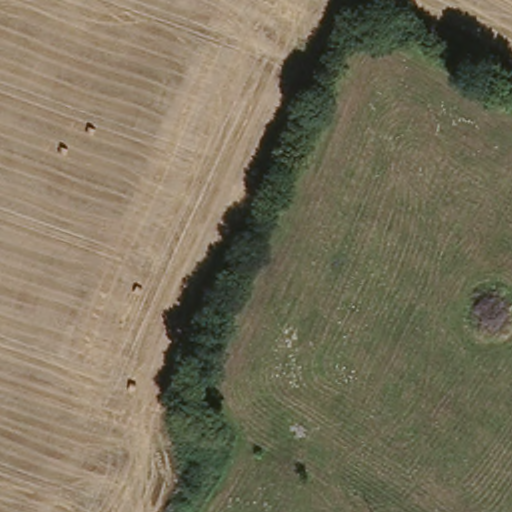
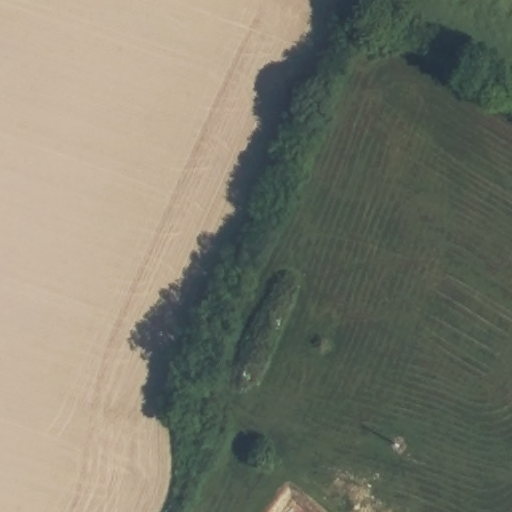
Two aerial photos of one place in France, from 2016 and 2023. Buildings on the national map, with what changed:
[]

